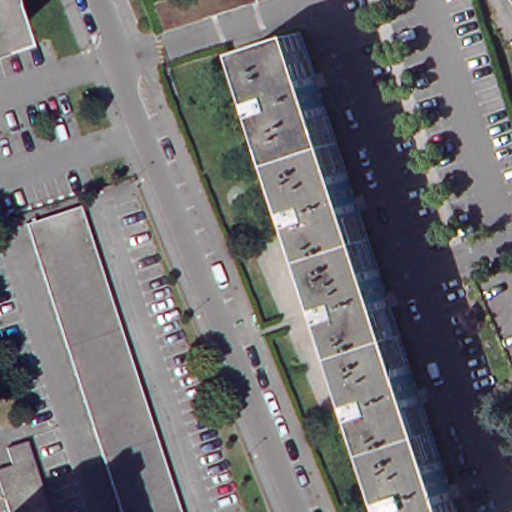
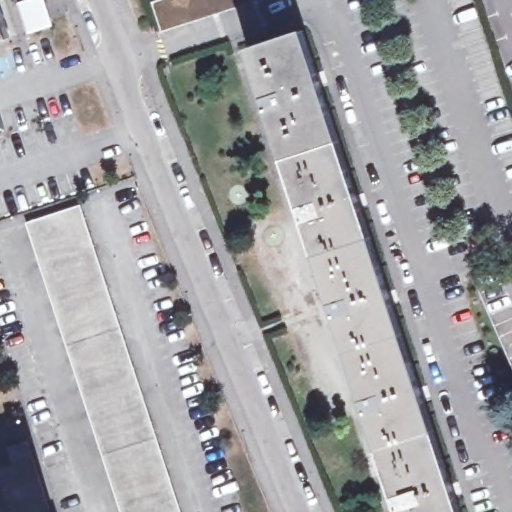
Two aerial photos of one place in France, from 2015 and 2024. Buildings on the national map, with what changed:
unchanged [(0,37),(0,0),(5,0),(15,32),(0,37)]
unchanged [(242,0),(162,26),(153,0),(242,0)]
unchanged [(315,54),(346,146),(380,250),(416,358),(455,476),(466,512),(404,512),(253,49),(308,31),(315,54)]
unchanged [(181,512),(122,512),(27,224),(80,206),(181,512)]
unchanged [(480,274),(512,267),(512,348),(480,274)]
unchanged [(0,482),(0,469),(12,465),(7,447),(27,441),(50,511),(47,512),(10,512),(0,482)]

